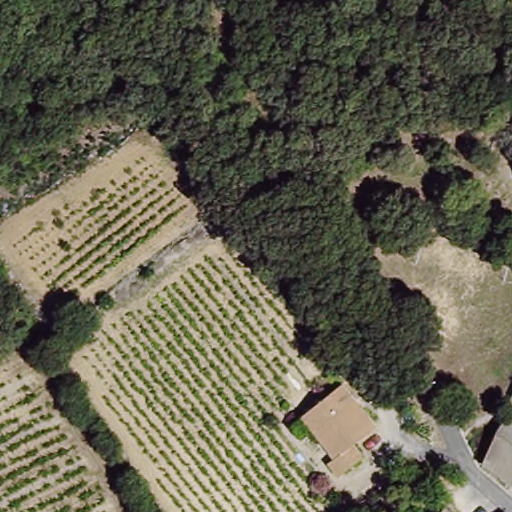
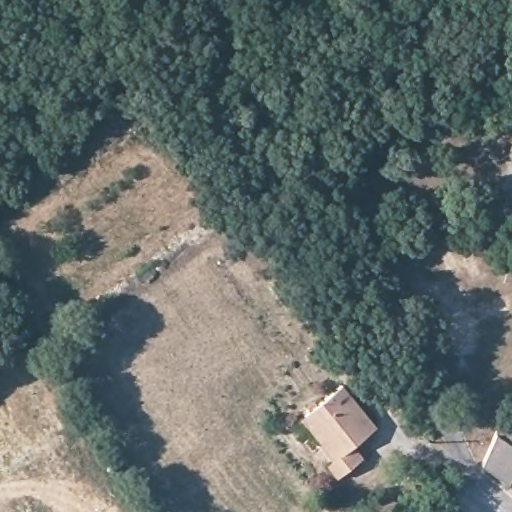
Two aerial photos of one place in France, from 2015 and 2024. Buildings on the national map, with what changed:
unchanged [(359,404),(367,415),(380,429),(355,446),(364,460),(335,480),(327,468),(335,461),(325,447),(303,417),(310,412),(345,386),(359,404)]
unchanged [(499,425),(512,431),(512,480),(512,481),(487,458),(487,455),(499,425)]
unchanged [(468,512),(430,512),(445,494),(468,512)]

